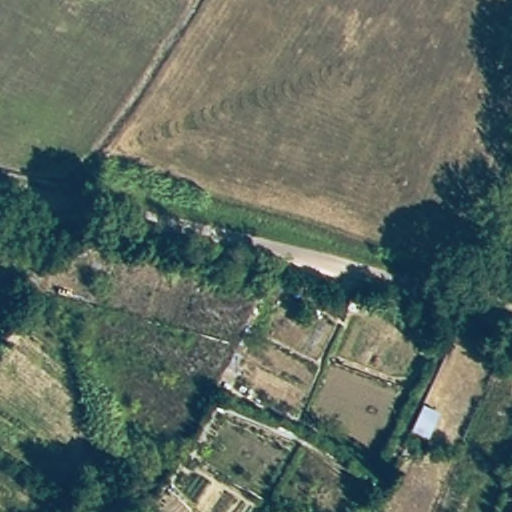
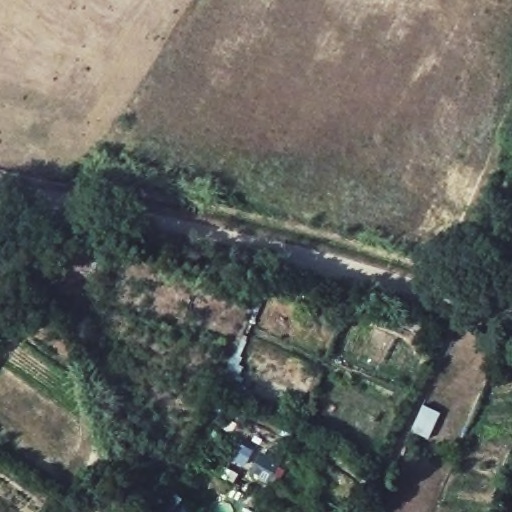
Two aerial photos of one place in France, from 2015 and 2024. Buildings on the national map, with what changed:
unchanged [(436,413),(427,434),(411,427),(420,407),(436,413)]

